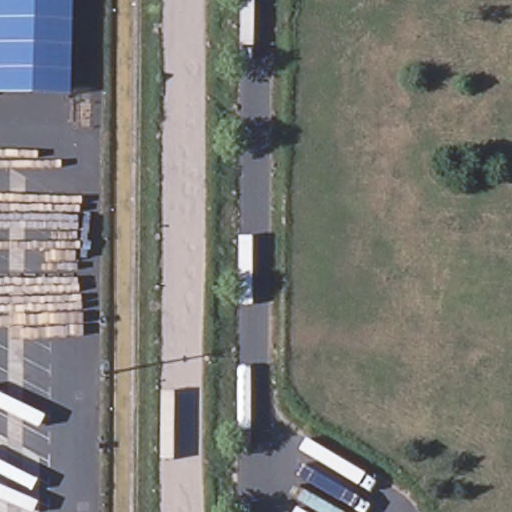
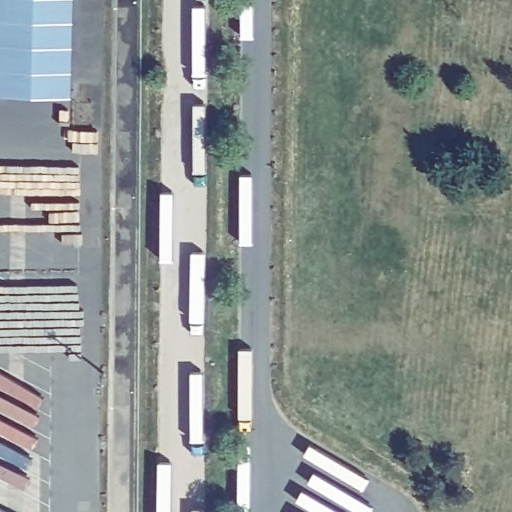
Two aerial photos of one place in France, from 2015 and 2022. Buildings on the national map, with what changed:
unchanged [(0,90),(0,0),(78,0),(77,93),(0,90)]

